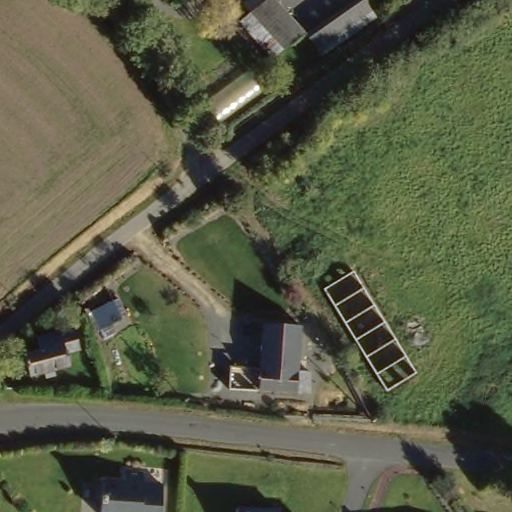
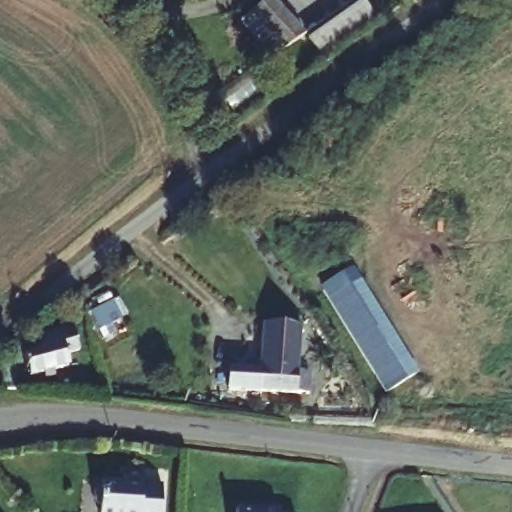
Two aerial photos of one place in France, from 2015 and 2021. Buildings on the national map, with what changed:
unchanged [(241,17),(239,16),(252,0),(257,0),(289,40),(271,55),(241,17)]
unchanged [(366,0),(388,0),(392,5),(359,31),(348,14),(366,0)]
unchanged [(212,125),(200,110),(247,75),(260,94),(212,125)]
new [(319,286),(354,265),(418,375),(386,393),(319,286)]
unchanged [(109,316),(116,335),(92,343),(84,324),(109,316)]
unchanged [(259,323),(298,325),(295,370),(279,369),(257,367),(259,323)]
unchanged [(52,381),(41,382),(39,376),(26,379),(21,355),(34,351),(32,341),(71,332),(78,355),(67,358),(68,370),(51,373),(52,381)]
unchanged [(279,369),(295,370),(308,371),(307,394),(242,390),(226,388),(227,365),(244,366),(257,367),(279,369)]
unchanged [(98,504),(94,500),(95,489),(99,486),(102,486),(102,483),(123,485),(124,474),(142,475),(142,485),(162,487),(160,512),(100,512),(101,505),(98,504)]

